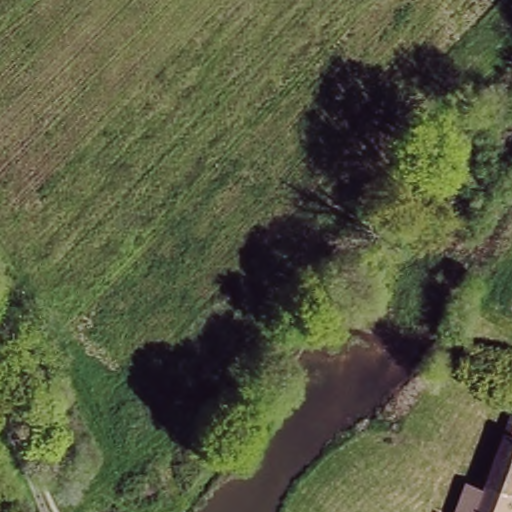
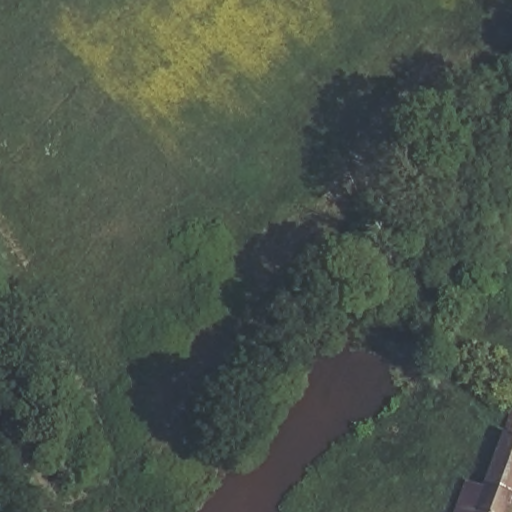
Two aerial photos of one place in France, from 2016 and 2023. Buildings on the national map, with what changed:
unchanged [(512,423),(512,435),(508,433),(512,423)]
unchanged [(482,497),(504,440),(512,443),(512,505),(509,512),(454,512),(462,490),(482,497)]

